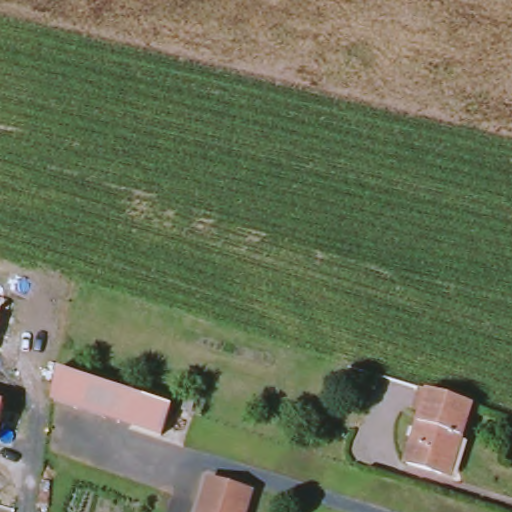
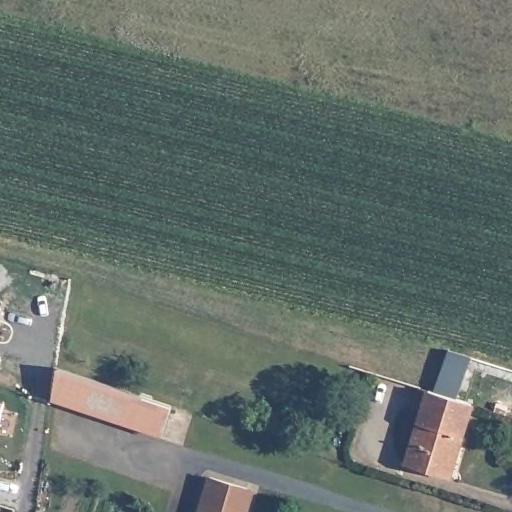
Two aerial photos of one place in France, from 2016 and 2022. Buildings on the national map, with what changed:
unchanged [(0,307),(1,307),(0,311),(0,307)]
new [(446,348),(465,354),(450,395),(431,388),(446,348)]
unchanged [(63,370),(171,405),(161,434),(52,399),(61,370),(63,370)]
unchanged [(432,388),(473,402),(462,435),(454,434),(442,473),(403,461),(427,388),(432,388)]
unchanged [(0,402),(5,403),(0,422),(0,402)]
unchanged [(247,485),(239,512),(199,512),(211,473),(247,485)]

